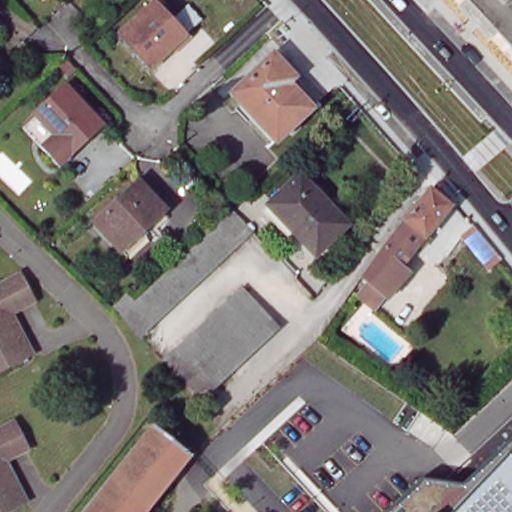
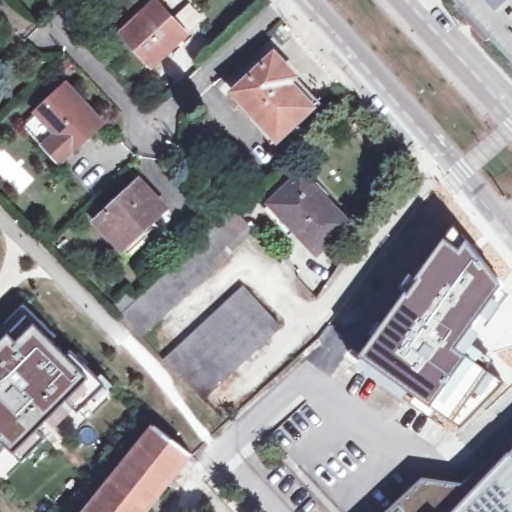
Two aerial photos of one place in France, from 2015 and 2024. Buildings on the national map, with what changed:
unchanged [(459,0),(512,0),(512,56),(505,49),(459,0)]
unchanged [(153,66),(124,34),(157,4),(186,37),(153,66)]
unchanged [(279,141),(235,94),(277,55),(321,101),(279,141)]
unchanged [(49,109),(47,107),(77,79),(114,119),(70,159),(54,142),(36,122),(49,109)]
unchanged [(319,253),(272,203),(302,175),(350,224),(319,253)]
unchanged [(124,250),(97,222),(142,180),(168,209),(124,250)]
unchanged [(356,296),(367,283),(360,278),(400,225),(428,190),(448,207),(399,268),(406,273),(386,298),(380,294),(370,307),(356,296)]
unchanged [(142,335),(124,316),(237,211),(255,231),(142,335)]
new [(447,234),(455,225),(506,283),(475,325),(481,329),(469,352),(428,407),(421,402),(419,404),(417,403),(416,405),(354,362),(447,234)]
demolished [(504,241),(494,250),(487,243),(497,233),(504,241)]
demolished [(27,277),(39,299),(12,313),(15,319),(18,318),(36,353),(0,371),(0,291),(27,277)]
unchanged [(182,377),(167,361),(247,287),(283,327),(225,380),(224,379),(204,397),(183,376),(182,377)]
unchanged [(137,301),(123,314),(115,306),(129,293),(137,301)]
new [(23,307),(27,315),(35,325),(63,354),(70,350),(104,386),(78,411),(66,401),(34,432),(43,440),(22,459),(15,453),(1,440),(0,440),(0,330),(23,307)]
new [(469,352),(487,368),(447,419),(428,407),(469,352)]
new [(487,368),(502,381),(459,429),(447,419),(487,368)]
demolished [(21,425),(33,447),(6,461),(9,467),(11,466),(29,501),(7,512),(0,512),(0,435),(21,425)]
unchanged [(192,453),(196,456),(151,512),(89,512),(157,425),(192,453)]
unchanged [(460,487),(512,440),(512,512),(386,512),(421,480),(460,487)]

